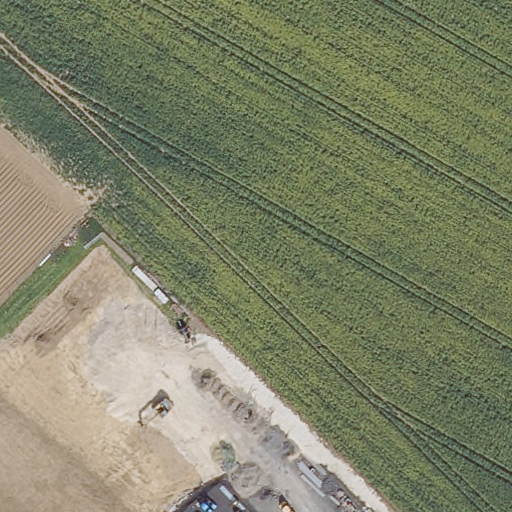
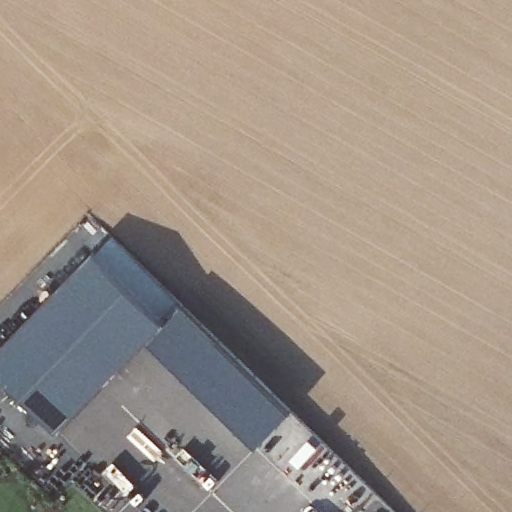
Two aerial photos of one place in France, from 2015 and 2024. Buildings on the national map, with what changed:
new [(0,349),(95,252),(167,321),(149,340),(60,430),(0,372),(0,349)]
new [(292,410),(257,445),(149,340),(167,321),(183,304),(292,410)]

